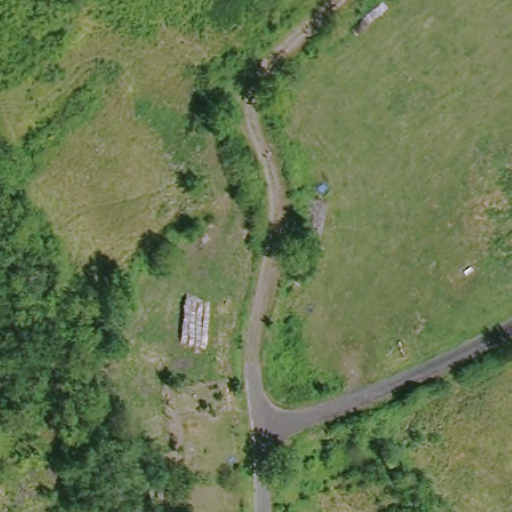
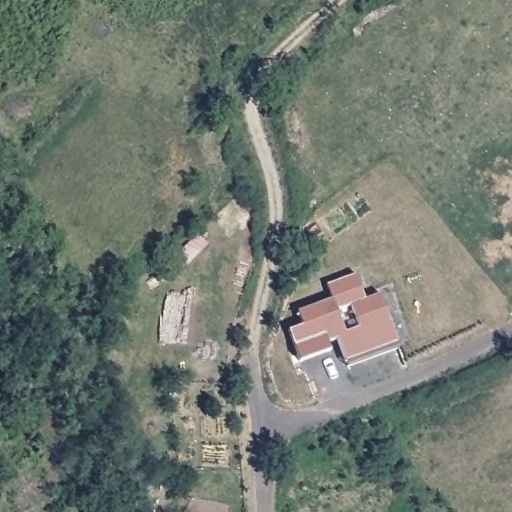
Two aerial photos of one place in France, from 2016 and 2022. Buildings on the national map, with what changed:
new [(356,274),(365,299),(380,294),(399,347),(347,367),(337,339),(328,343),(330,349),(300,361),(290,330),(303,325),(299,310),(332,299),(328,284),(356,274)]

